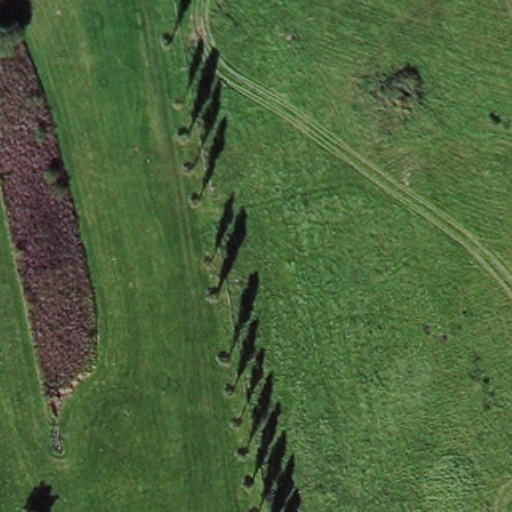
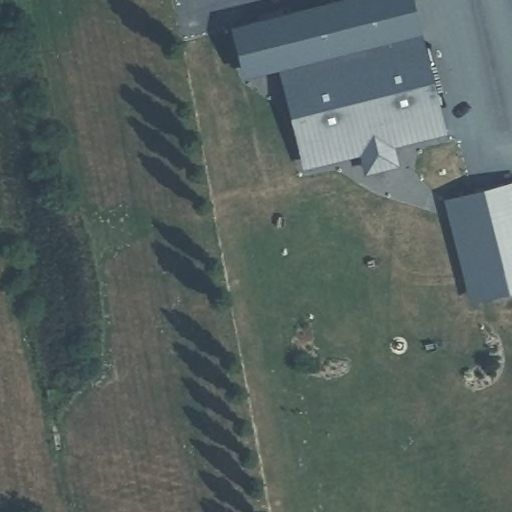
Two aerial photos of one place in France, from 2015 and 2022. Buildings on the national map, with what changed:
new [(360,168),(355,149),(301,163),(276,64),(242,72),(231,25),(329,0),(405,0),(437,128),(384,142),(388,161),(360,168)]
new [(512,285),(479,293),(454,195),(512,181),(512,285)]

